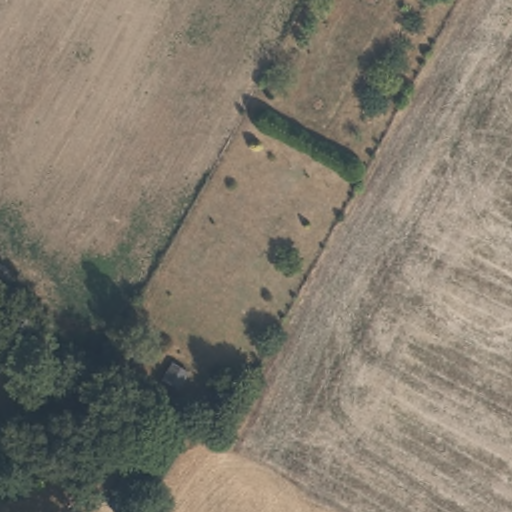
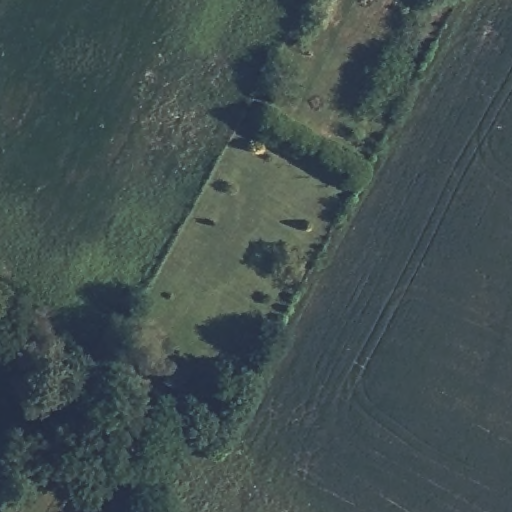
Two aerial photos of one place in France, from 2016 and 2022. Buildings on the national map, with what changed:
unchanged [(191,375),(180,392),(161,379),(171,362),(191,375)]

